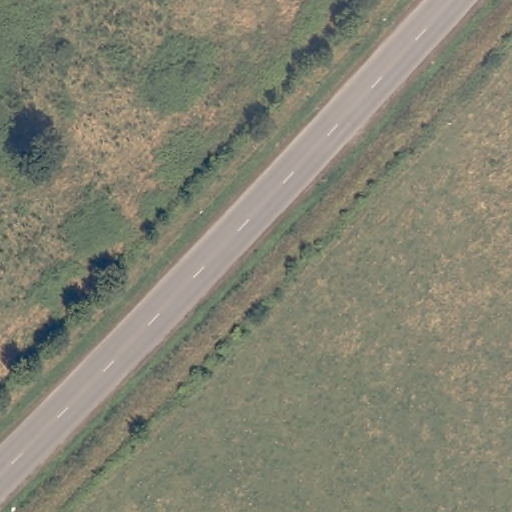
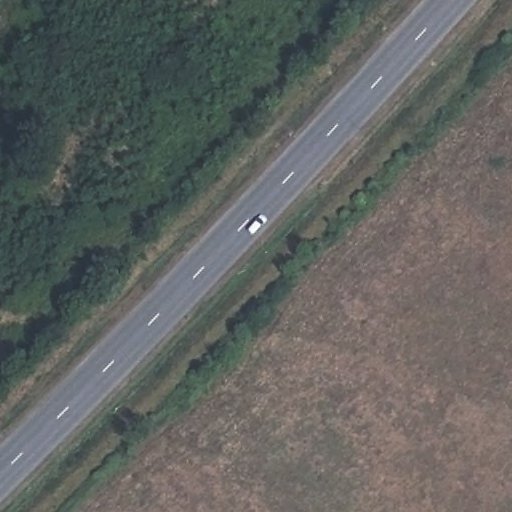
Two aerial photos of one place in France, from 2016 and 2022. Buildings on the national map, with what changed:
[]

